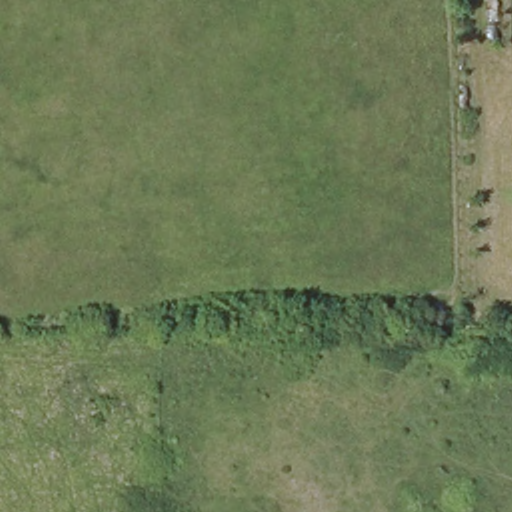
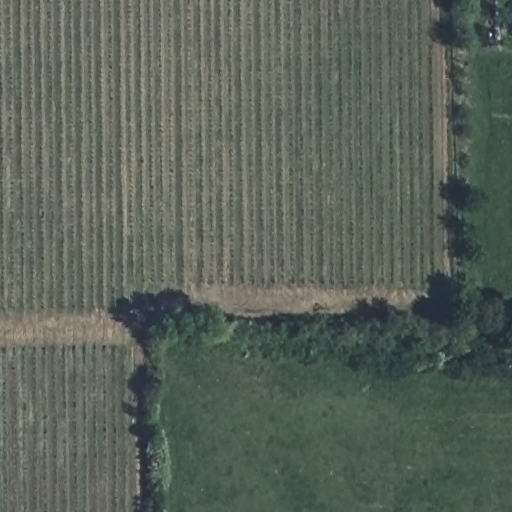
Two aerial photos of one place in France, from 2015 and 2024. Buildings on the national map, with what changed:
[]

